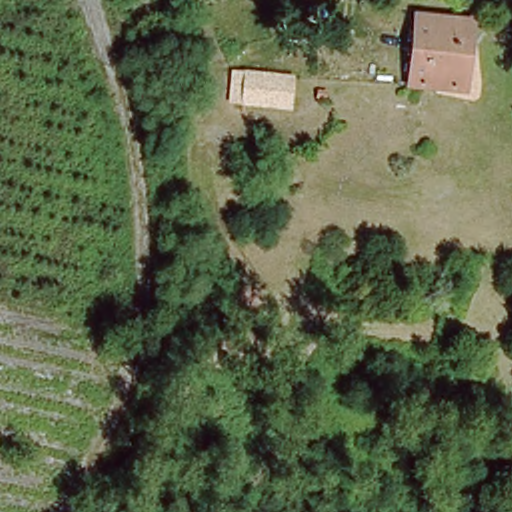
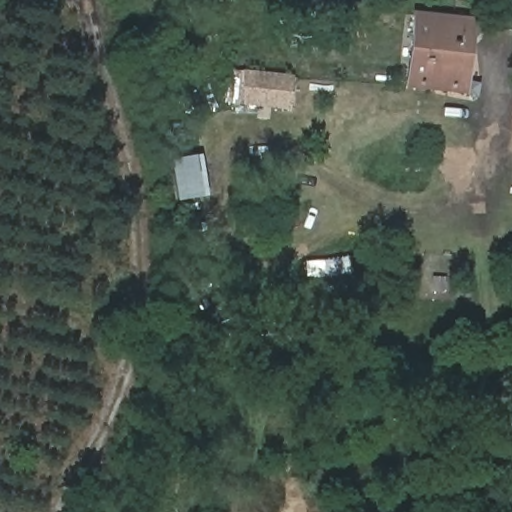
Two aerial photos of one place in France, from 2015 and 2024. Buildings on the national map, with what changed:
unchanged [(409,86),(416,18),(474,24),(467,92),(409,86)]
unchanged [(237,108),(238,75),(282,77),(281,109),(237,108)]
new [(170,161),(200,155),(209,197),(177,203),(170,161)]

